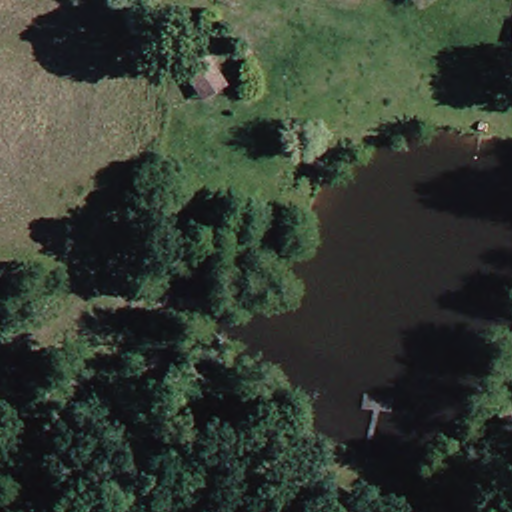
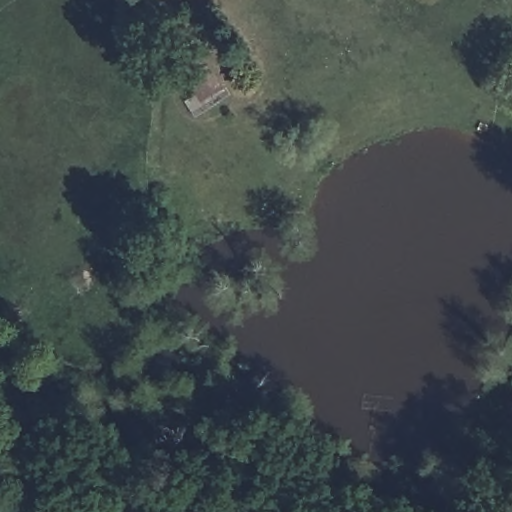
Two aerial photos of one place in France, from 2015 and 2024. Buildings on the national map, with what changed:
unchanged [(254,81),(232,99),(225,91),(206,69),(228,50),(238,62),(254,81)]

